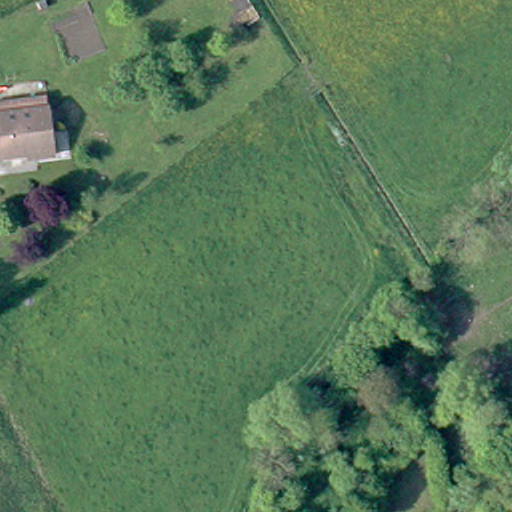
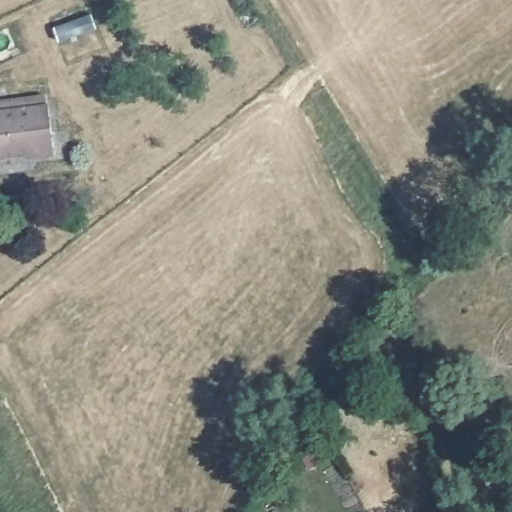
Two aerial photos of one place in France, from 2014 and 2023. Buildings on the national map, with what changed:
unchanged [(54,154),(36,156),(35,152),(0,156),(0,101),(45,96),(47,107),(49,107),(54,154)]

